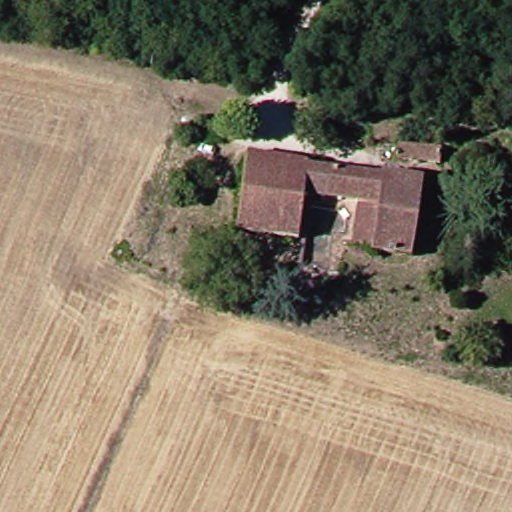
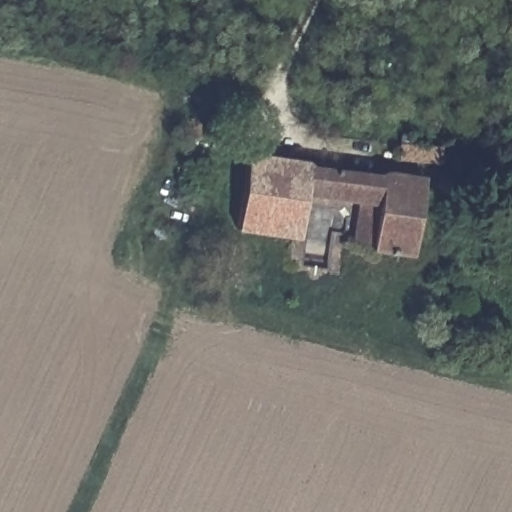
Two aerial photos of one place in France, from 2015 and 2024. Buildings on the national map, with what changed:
unchanged [(226,124),(224,137),(204,134),(206,121),(226,124)]
unchanged [(405,154),(407,139),(444,144),(445,158),(405,154)]
unchanged [(355,242),(361,200),(306,196),(298,241),(244,233),(254,157),(432,180),(420,252),(355,242)]

